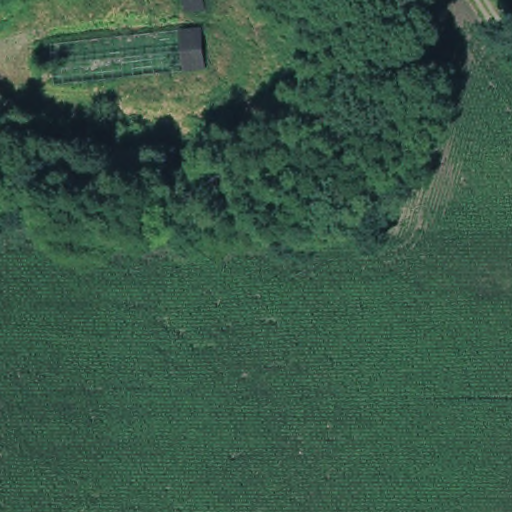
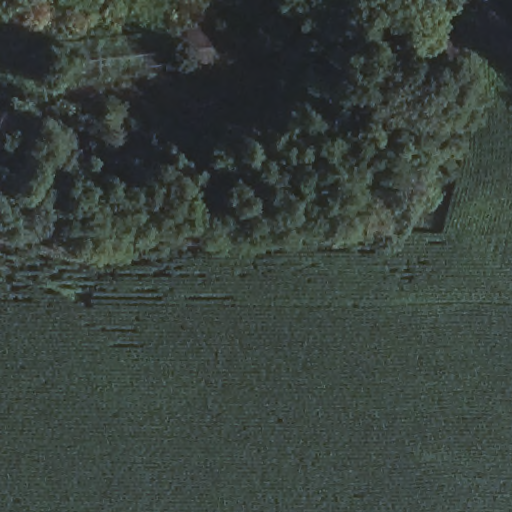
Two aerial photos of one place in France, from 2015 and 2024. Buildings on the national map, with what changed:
unchanged [(208,5),(187,8),(186,0),(207,0),(208,5)]
unchanged [(203,23),(210,66),(56,83),(54,41),(203,23)]

